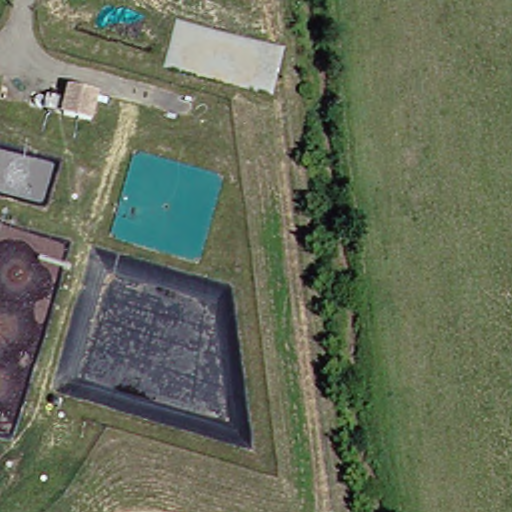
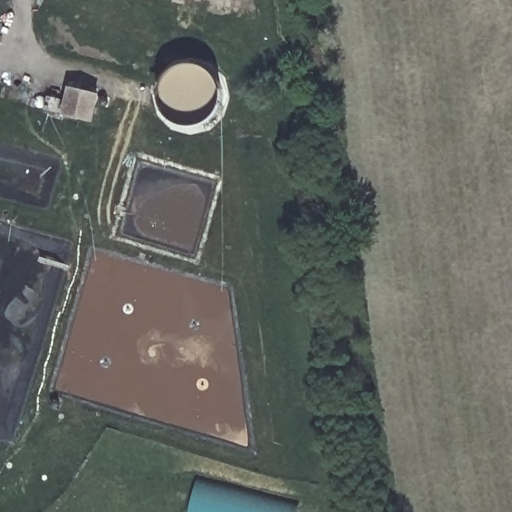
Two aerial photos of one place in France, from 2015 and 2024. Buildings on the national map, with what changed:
unchanged [(101,95),(95,125),(60,117),(67,87),(101,95)]
new [(197,480),(299,506),(298,512),(188,512),(197,480)]

